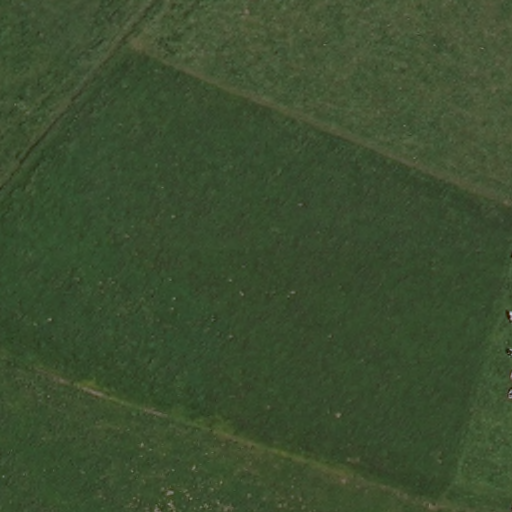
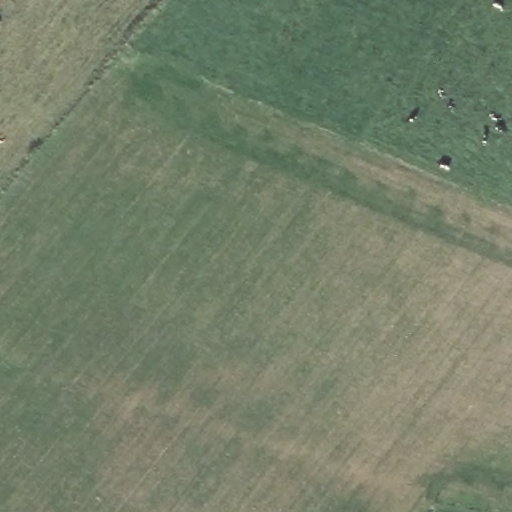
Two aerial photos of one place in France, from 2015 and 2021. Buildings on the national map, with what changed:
[]

